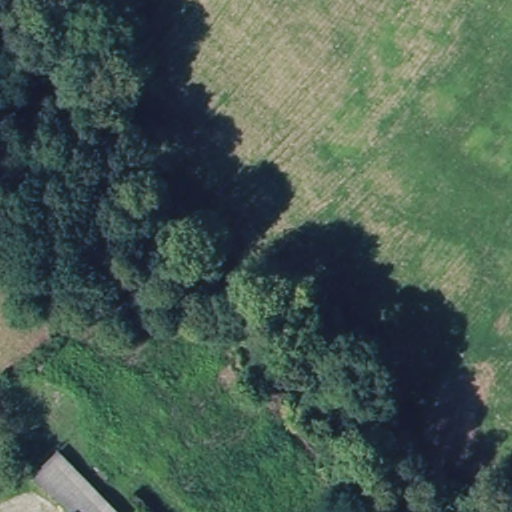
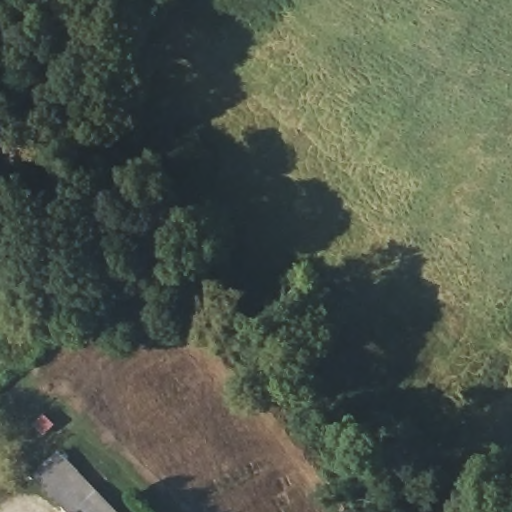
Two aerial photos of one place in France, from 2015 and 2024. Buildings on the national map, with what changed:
unchanged [(44,481),(69,457),(120,510),(118,512),(73,512),(44,481)]

